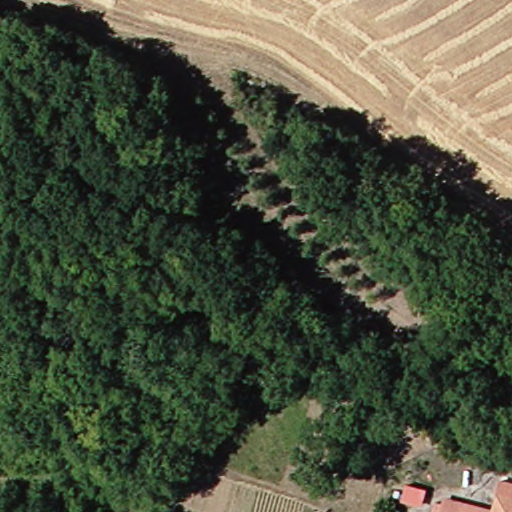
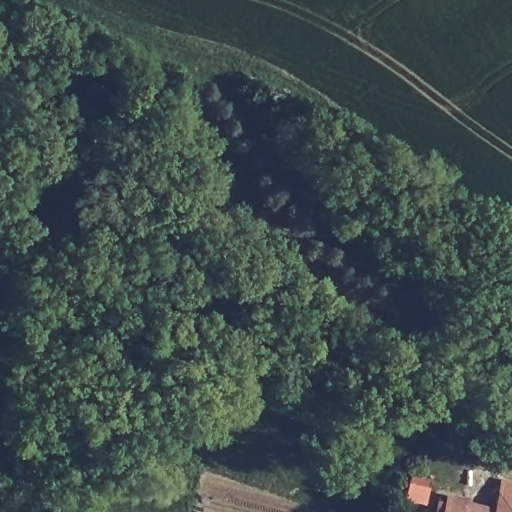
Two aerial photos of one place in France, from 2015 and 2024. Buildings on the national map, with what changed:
unchanged [(508,487),(512,488),(512,512),(499,512),(508,487)]
unchanged [(445,504),(447,498),(467,505),(487,512),(442,512),(445,504)]

